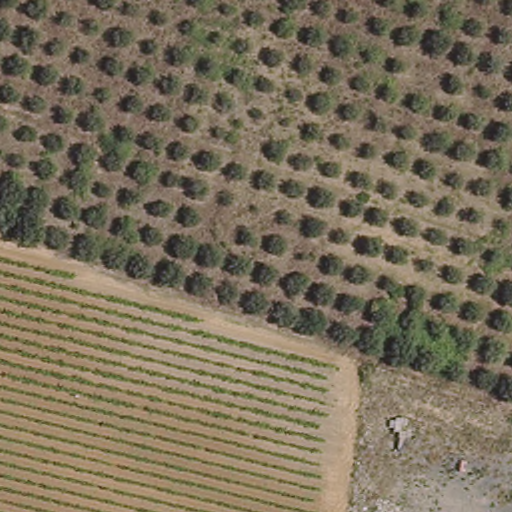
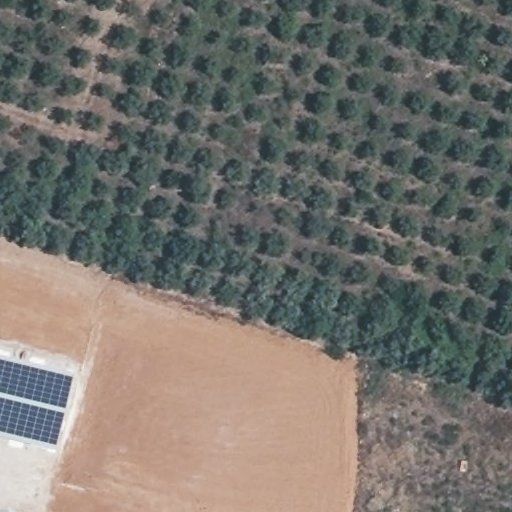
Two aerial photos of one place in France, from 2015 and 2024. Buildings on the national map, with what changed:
new [(74,375),(56,450),(0,435),(0,356),(74,375)]

